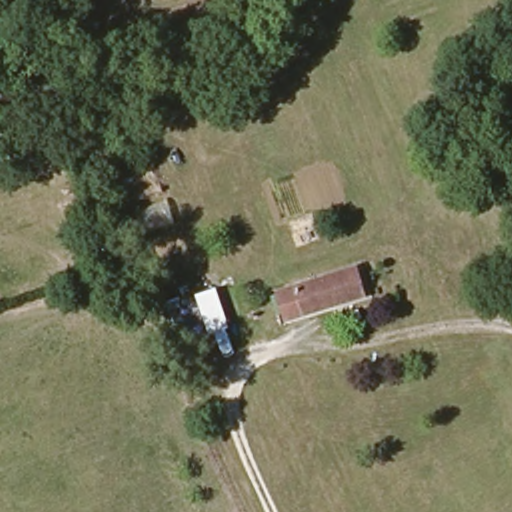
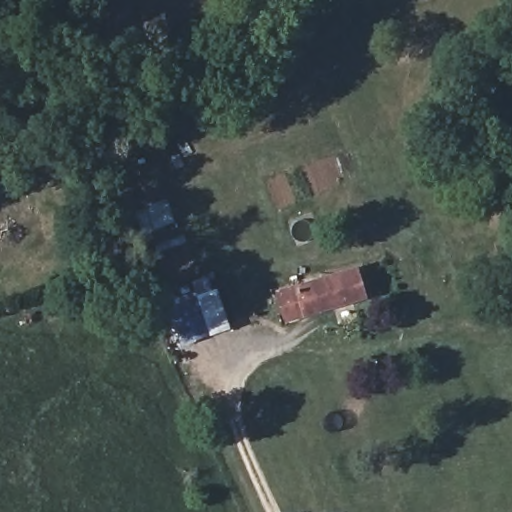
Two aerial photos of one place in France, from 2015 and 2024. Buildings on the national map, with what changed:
unchanged [(357,262),(364,290),(283,314),(275,286),(357,262)]

